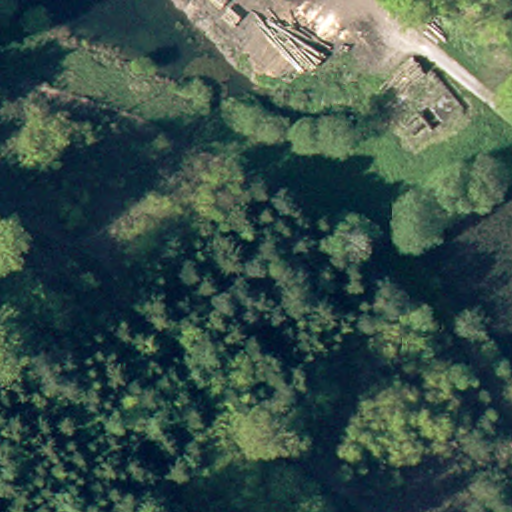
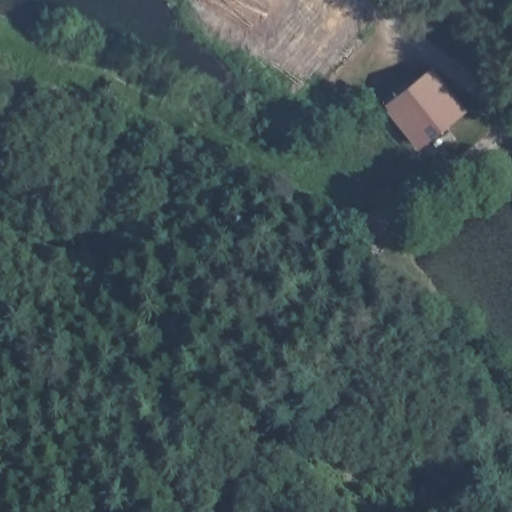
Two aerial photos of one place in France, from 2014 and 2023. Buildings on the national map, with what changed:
new [(419,152),(383,107),(434,68),(466,112),(419,152)]
demolished [(425,118),(409,129),(392,107),(440,71),(474,112),(440,136),(425,118)]
unchanged [(370,198),(394,214),(382,231),(358,214),(370,198)]

